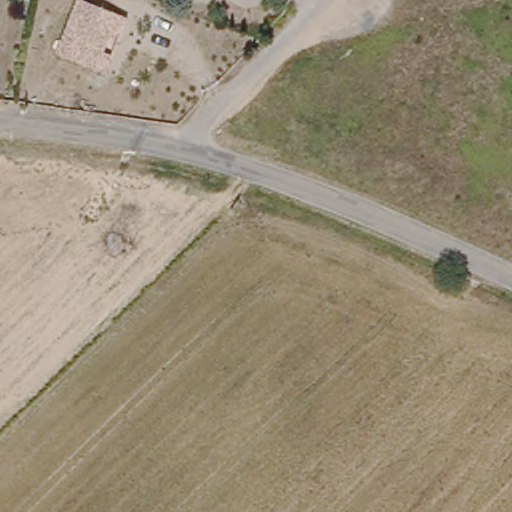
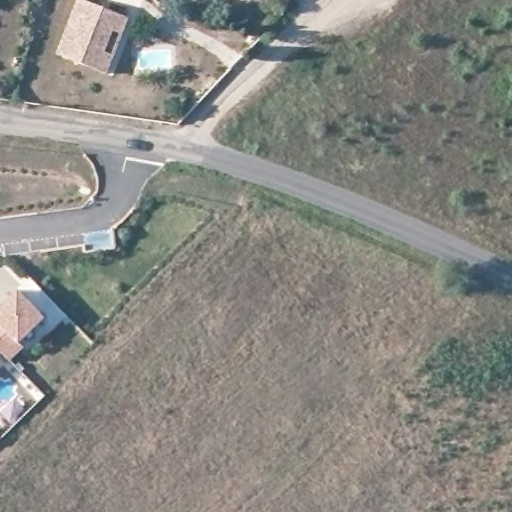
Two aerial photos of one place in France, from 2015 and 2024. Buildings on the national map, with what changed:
unchanged [(123,35),(113,31),(105,53),(115,56),(107,75),(58,56),(80,0),(83,0),(129,18),(123,35)]
new [(52,309),(27,334),(31,339),(17,352),(0,335),(0,303),(23,280),(52,309)]
new [(1,388),(0,386),(0,374),(0,357),(8,366),(15,373),(1,388)]

